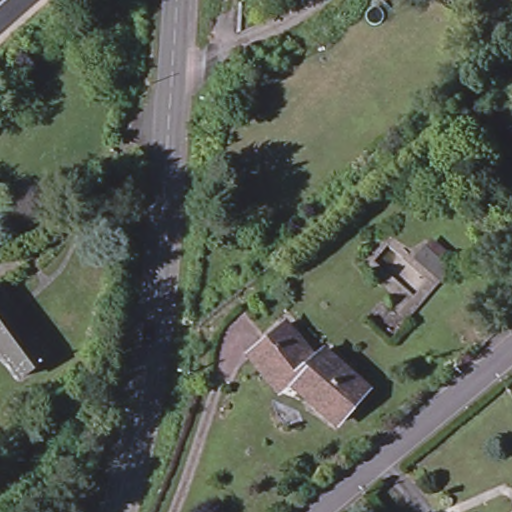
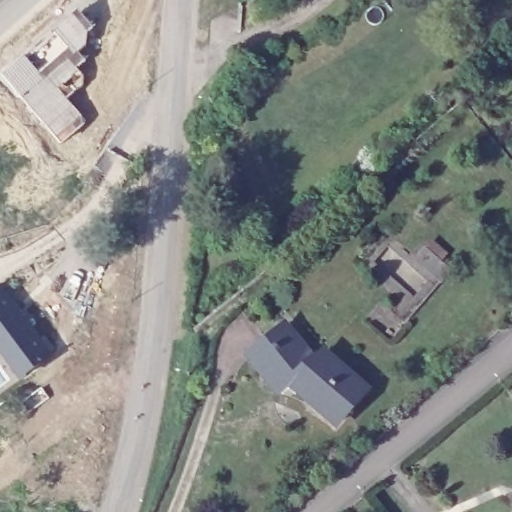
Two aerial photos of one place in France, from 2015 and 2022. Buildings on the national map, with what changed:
new [(78,9),(94,26),(87,32),(86,44),(78,52),(85,60),(77,66),(83,74),(83,85),(66,99),(87,122),(60,144),(1,74),(78,9)]
unchanged [(3,284),(18,304),(15,305),(53,356),(30,374),(1,335),(0,336),(0,286),(3,284)]
unchanged [(357,403),(354,401),(341,417),(311,391),(317,384),(304,372),(284,387),(254,352),(290,320),(308,340),(307,347),(318,359),(324,353),(329,347),(372,385),(361,399),(357,403)]

